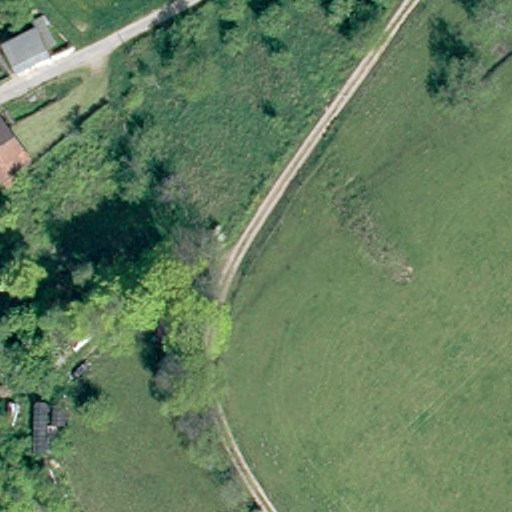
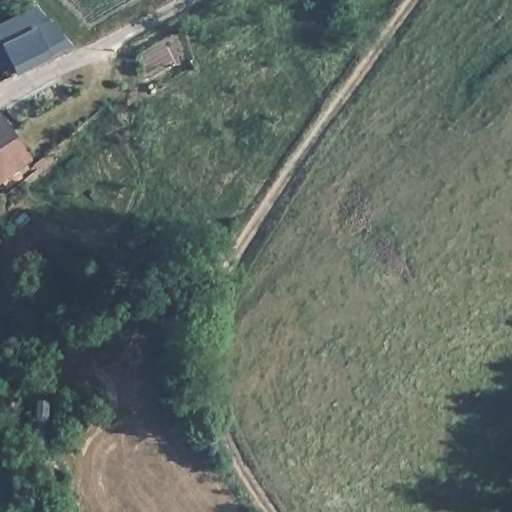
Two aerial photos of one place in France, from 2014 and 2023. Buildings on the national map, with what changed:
unchanged [(30,39),(26,29),(39,24),(50,50),(39,55),(44,65),(12,81),(0,53),(30,39)]
unchanged [(17,168),(23,176),(10,188),(6,183),(2,178),(0,179),(0,115),(31,157),(17,168)]
unchanged [(169,309),(188,313),(184,333),(166,329),(169,309)]

